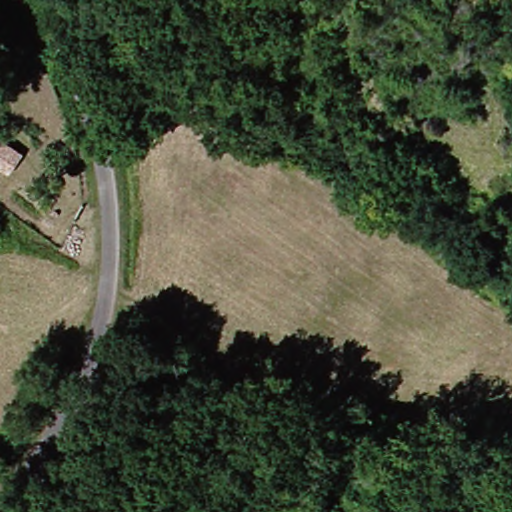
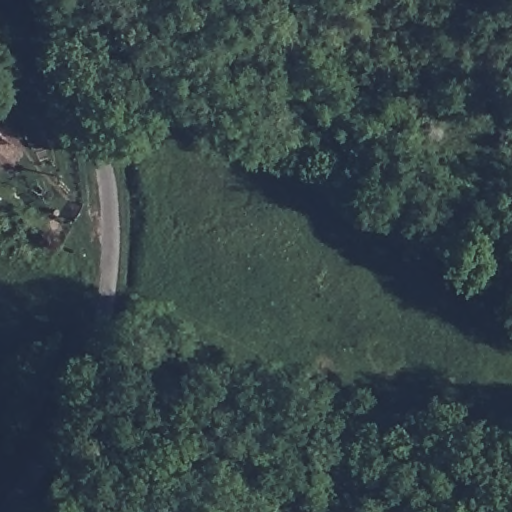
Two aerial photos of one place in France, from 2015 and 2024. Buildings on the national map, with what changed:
unchanged [(0,163),(0,140),(22,155),(13,171),(0,163)]

